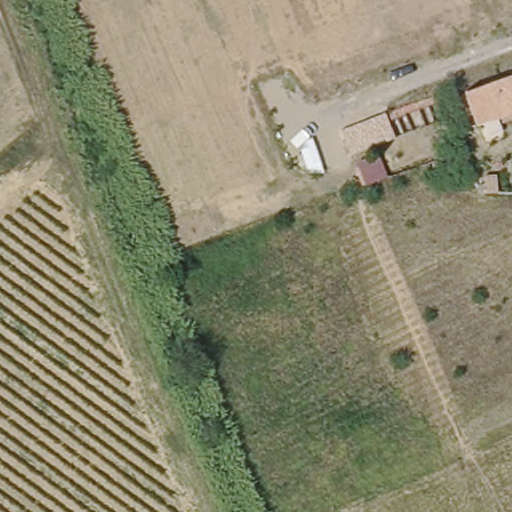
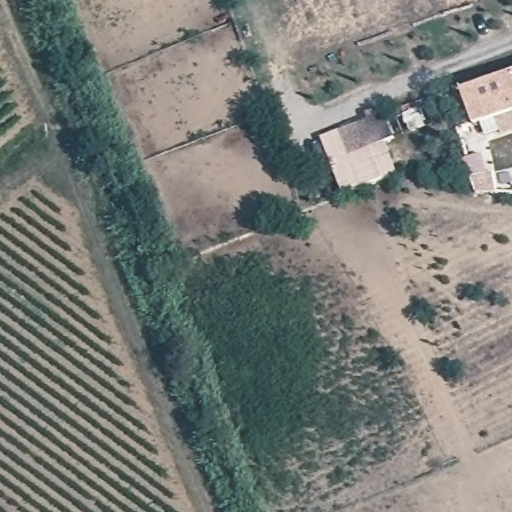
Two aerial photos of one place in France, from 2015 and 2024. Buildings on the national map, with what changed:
unchanged [(492,133),(487,119),(480,121),(469,87),(512,72),(512,110),(501,114),(506,128),(492,133)]
new [(370,122),(367,115),(385,108),(387,114),(395,139),(384,142),(397,172),(344,194),(322,139),(370,122)]

